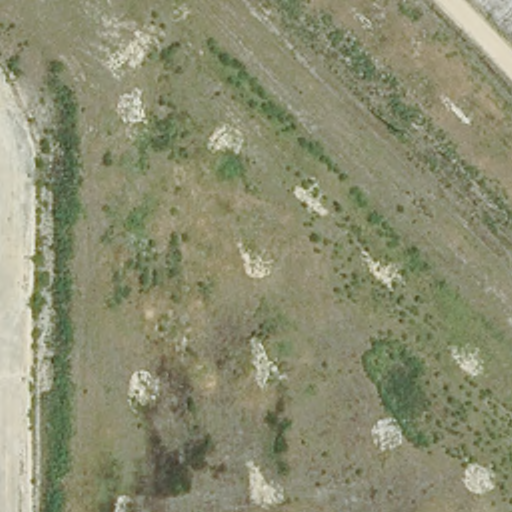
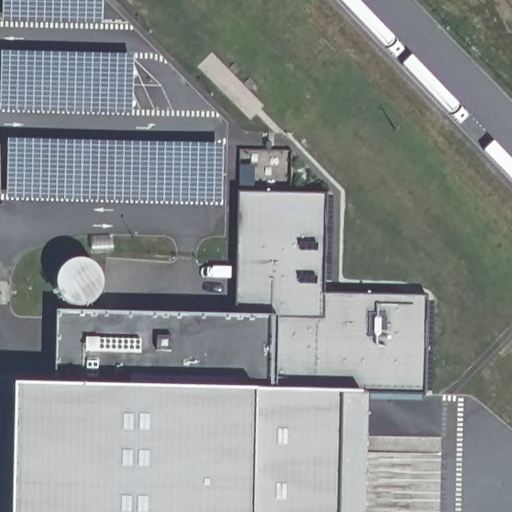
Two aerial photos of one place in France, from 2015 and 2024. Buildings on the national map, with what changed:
new [(238,315),(239,191),(326,193),(325,293),(428,294),(427,393),(370,393),(367,512),(252,512),(255,391),(55,385),(55,311),(238,315)]
new [(55,385),(255,391),(252,512),(9,512),(12,384),(55,385)]

